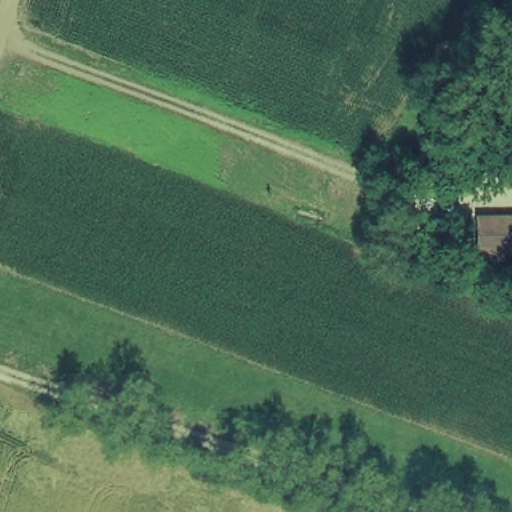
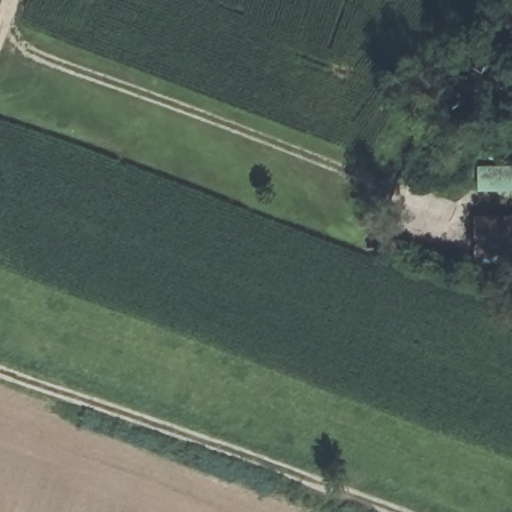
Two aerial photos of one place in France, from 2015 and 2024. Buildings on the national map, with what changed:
unchanged [(472,244),(472,209),(512,211),(512,247),(472,244)]

